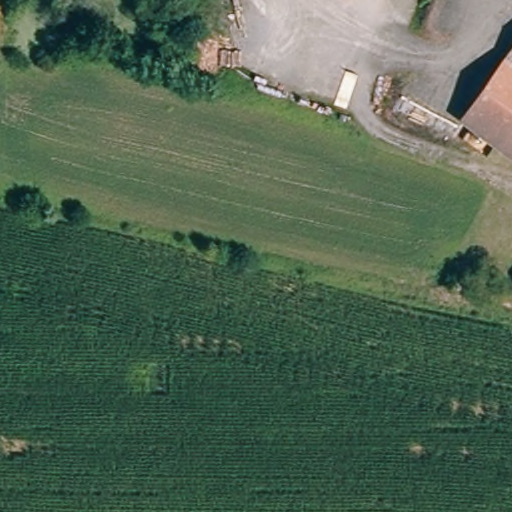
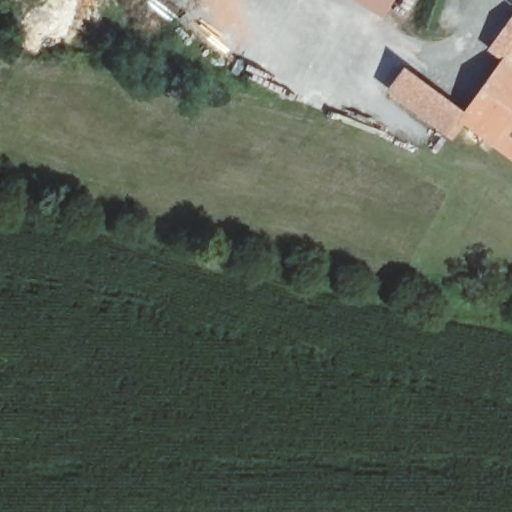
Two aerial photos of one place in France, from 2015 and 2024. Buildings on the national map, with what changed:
new [(385,15),(360,0),(394,0),(385,15)]
unchanged [(459,110),(512,38),(512,148),(459,110)]
new [(459,110),(468,116),(453,138),(389,91),(405,67),(461,107),(459,110)]

